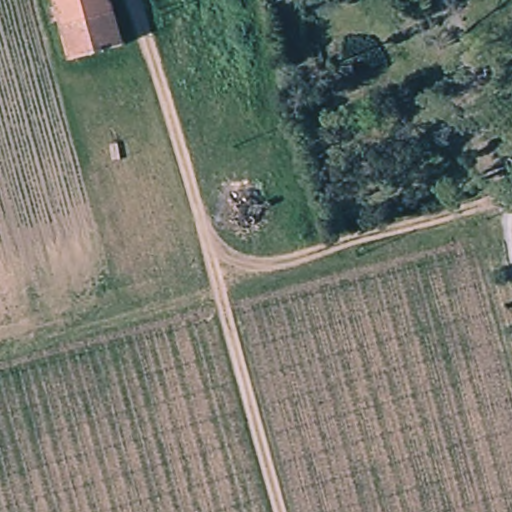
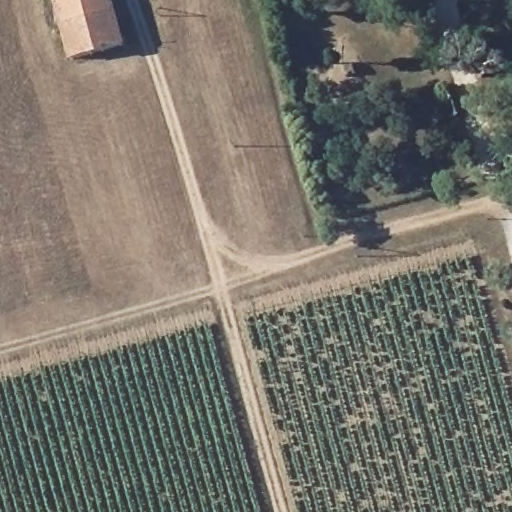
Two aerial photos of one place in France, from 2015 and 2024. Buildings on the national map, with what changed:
unchanged [(70,62),(53,0),(113,0),(125,47),(70,62)]

